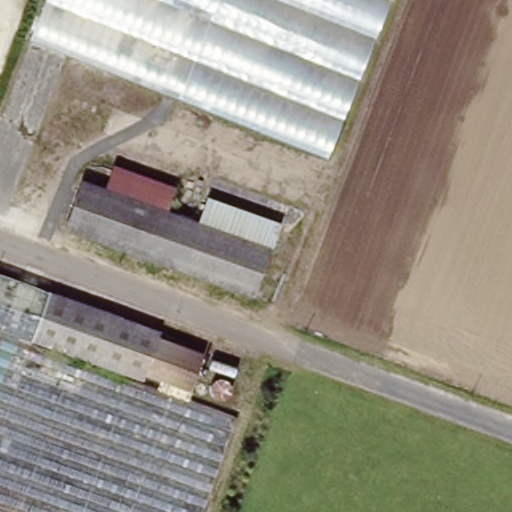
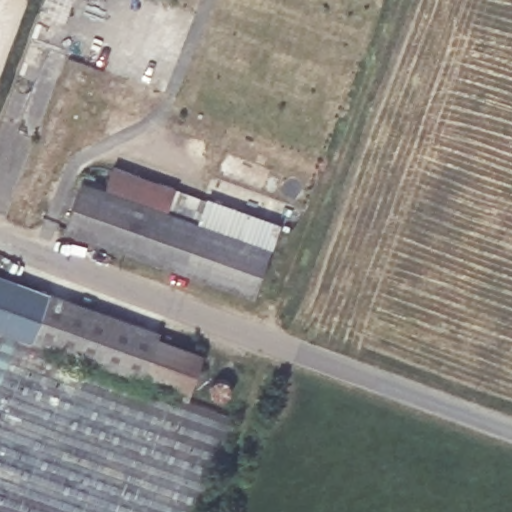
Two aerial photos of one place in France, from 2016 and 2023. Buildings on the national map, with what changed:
demolished [(31,36),(45,0),(375,0),(317,147),(31,36)]
unchanged [(176,186),(170,209),(104,184),(112,162),(176,186)]
unchanged [(104,184),(170,209),(197,219),(271,246),(255,292),(68,224),(85,177),(104,184)]
unchanged [(279,222),(271,246),(197,219),(207,194),(279,222)]
unchanged [(17,338),(187,398),(234,415),(199,512),(0,512),(0,277),(33,289),(17,338)]
unchanged [(50,290),(159,325),(157,335),(146,361),(194,380),(187,398),(17,338),(33,289),(50,290)]
unchanged [(159,336),(203,354),(194,380),(146,361),(157,335),(159,336)]

